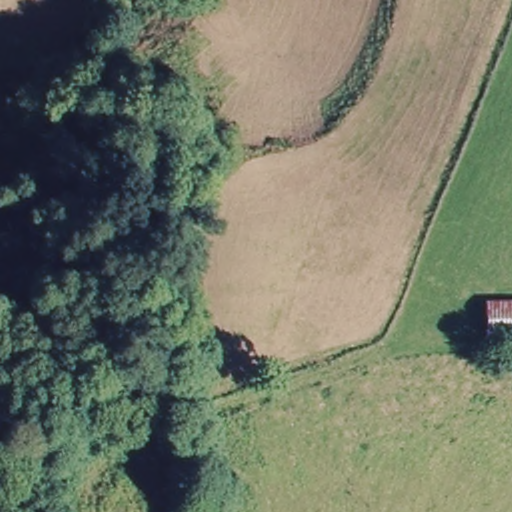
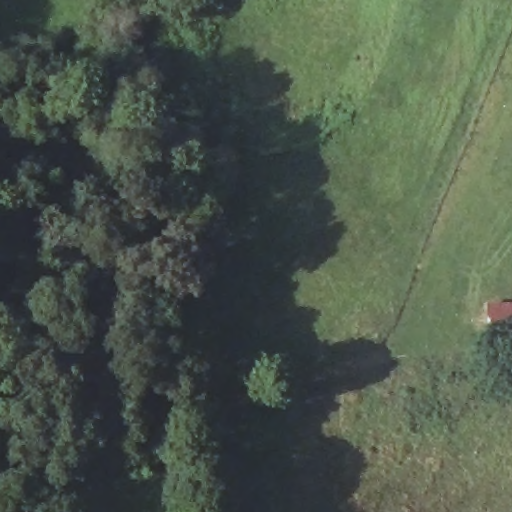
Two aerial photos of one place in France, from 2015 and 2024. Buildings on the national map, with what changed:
unchanged [(483,303),(512,302),(512,340),(482,337),(483,303)]

